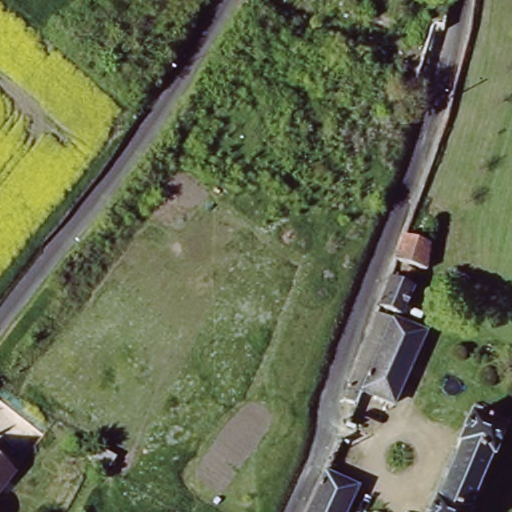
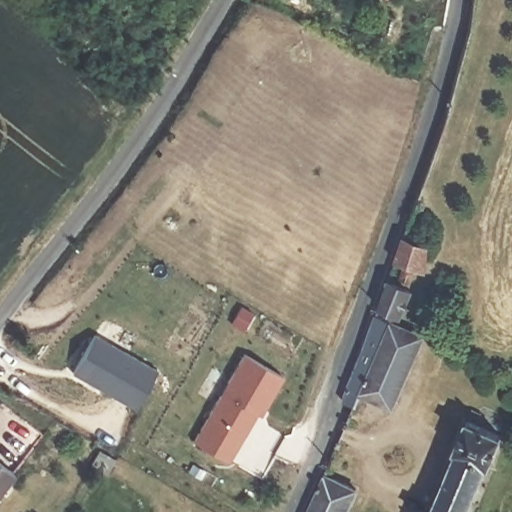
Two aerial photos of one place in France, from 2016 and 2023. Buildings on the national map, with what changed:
unchanged [(428,269),(403,258),(411,236),(437,245),(428,269)]
unchanged [(420,270),(417,278),(407,274),(410,266),(420,270)]
unchanged [(418,286),(408,313),(387,304),(397,277),(418,286)]
unchanged [(353,399),(384,312),(430,330),(405,402),(374,389),(367,405),(353,399)]
new [(95,330),(160,369),(137,408),(75,371),(95,330)]
new [(242,352),(282,376),(260,416),(257,413),(227,462),(193,441),(242,352)]
unchanged [(459,512),(421,512),(425,502),(428,504),(452,445),(448,444),(461,414),(497,430),(486,460),(480,457),(459,512)]
unchanged [(0,496),(0,460),(15,474),(0,496)]
unchanged [(350,512),(313,512),(331,472),(361,487),(350,512)]

